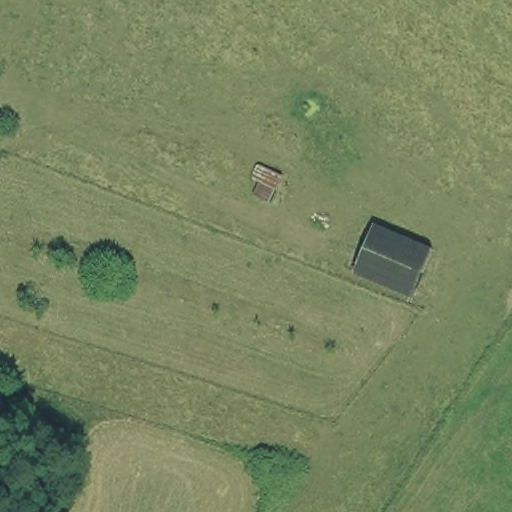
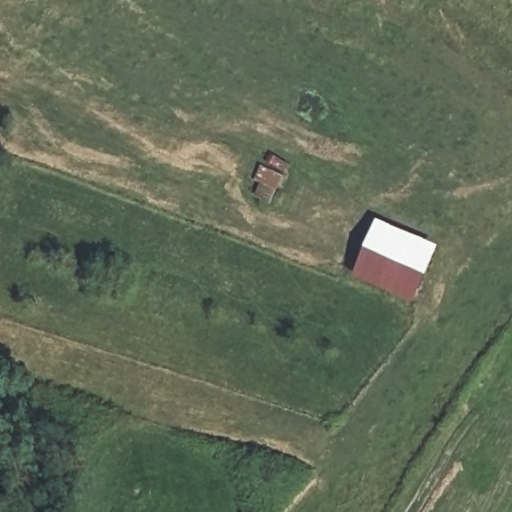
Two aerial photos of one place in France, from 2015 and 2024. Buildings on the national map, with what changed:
unchanged [(384,225),(444,247),(423,298),(366,275),(384,225)]

